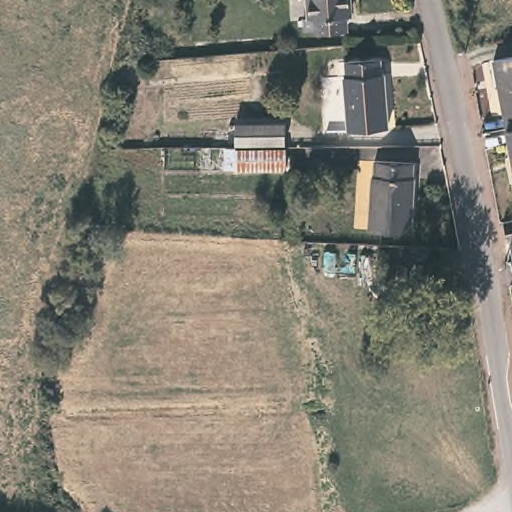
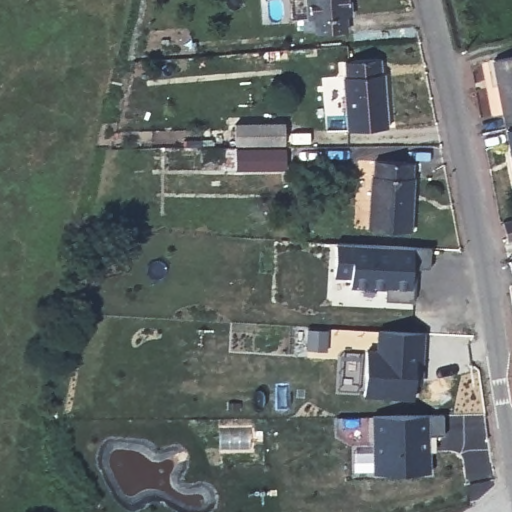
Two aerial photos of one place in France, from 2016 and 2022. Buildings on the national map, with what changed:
unchanged [(350,16),(346,17),(347,31),(314,33),(314,31),(303,31),(303,20),(308,20),(307,0),(349,0),(350,16)]
unchanged [(182,55),(147,58),(145,47),(181,45),(182,55)]
unchanged [(510,154),(506,130),(492,60),(512,56),(512,163),(510,154)]
unchanged [(382,75),(384,75),(388,128),(347,130),(343,77),(345,77),(344,62),(381,60),(382,75)]
unchanged [(284,145),(234,145),(234,124),(284,124),(284,145)]
unchanged [(284,170),(234,170),(234,169),(224,169),(224,150),(284,149),(284,170)]
unchanged [(413,163),(412,177),(414,177),(411,231),(368,229),(371,175),(373,175),(374,161),(413,163)]
unchanged [(508,241),(504,222),(512,221),(512,241),(508,241)]
new [(431,269),(414,268),(413,301),(386,300),(386,290),(350,287),(350,277),(334,276),(335,242),(432,248),(431,269)]
demolished [(468,305),(451,307),(449,295),(467,293),(468,305)]
new [(422,385),(414,385),(414,398),(363,396),(365,348),(377,349),(378,330),(424,331),(422,385)]
new [(445,435),(428,435),(429,471),(374,471),(373,415),(444,415),(445,435)]

